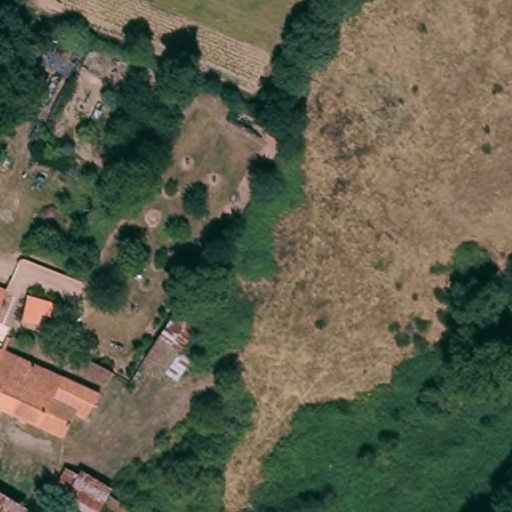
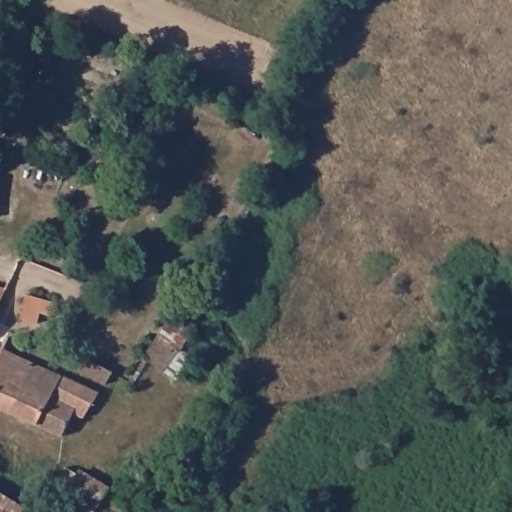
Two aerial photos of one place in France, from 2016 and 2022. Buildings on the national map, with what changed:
unchanged [(8,276),(2,291),(0,296),(0,275),(8,276)]
unchanged [(12,350),(18,329),(31,332),(40,301),(55,305),(47,336),(50,336),(56,338),(50,357),(31,353),(12,350)]
unchanged [(158,345),(190,365),(174,388),(143,370),(158,345)]
unchanged [(81,420),(74,415),(67,427),(0,406),(0,346),(7,348),(3,355),(73,371),(105,388),(81,420)]
unchanged [(101,481),(97,489),(118,502),(113,512),(102,512),(89,505),(84,512),(58,498),(50,492),(68,461),(101,481)]
unchanged [(0,512),(0,497),(23,511),(22,512),(0,512)]

